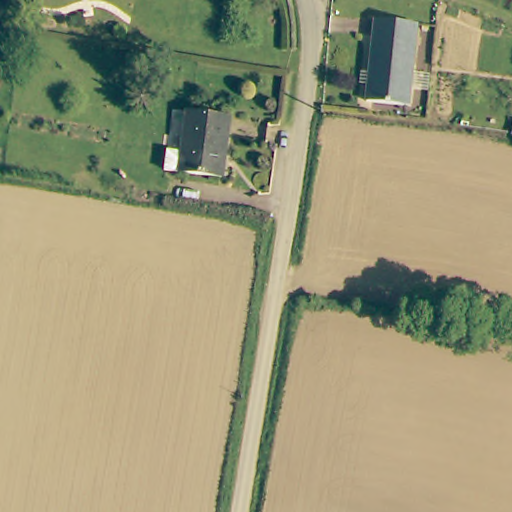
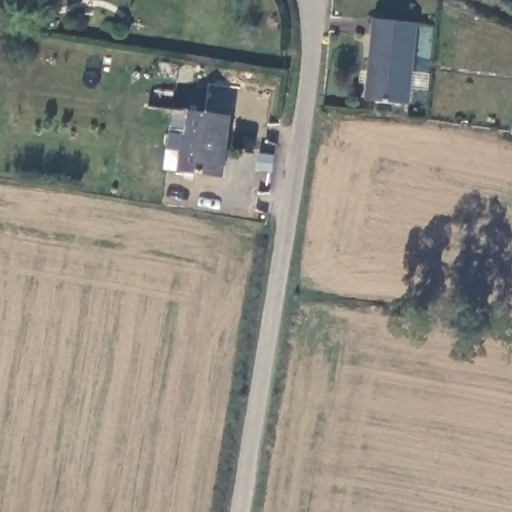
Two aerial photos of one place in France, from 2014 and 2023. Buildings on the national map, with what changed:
unchanged [(409,104),(365,97),(375,17),(417,21),(409,104)]
unchanged [(224,173),(182,169),(188,109),(230,111),(224,173)]

